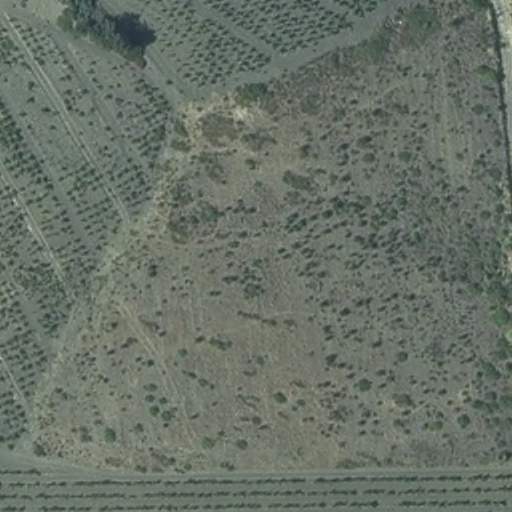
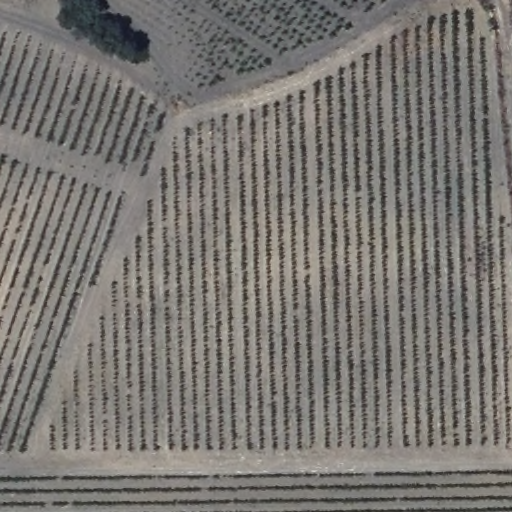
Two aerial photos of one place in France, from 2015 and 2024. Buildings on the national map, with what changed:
[]

